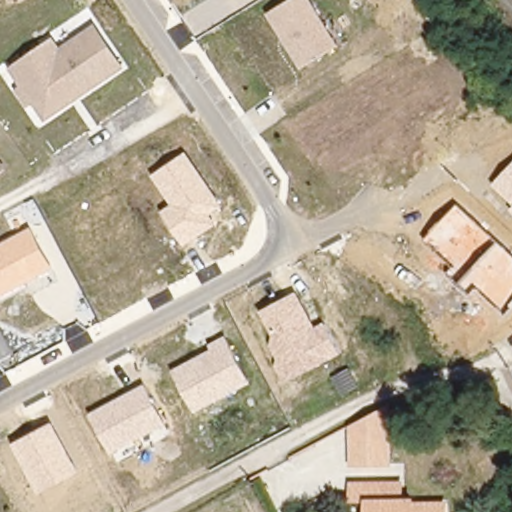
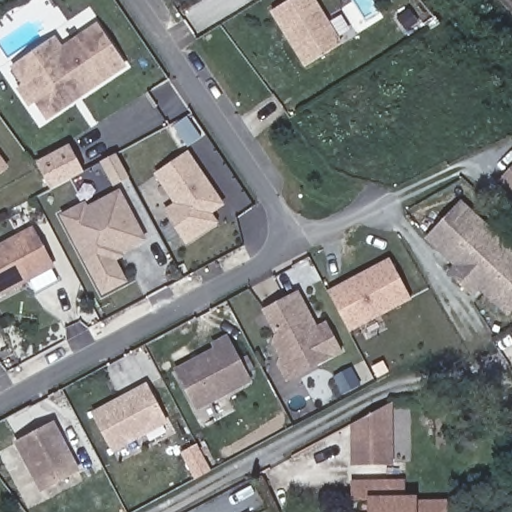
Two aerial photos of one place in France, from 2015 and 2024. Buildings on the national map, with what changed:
unchanged [(316,0),(343,43),(305,68),(271,12),(291,0),(316,0)]
unchanged [(49,122),(37,104),(31,107),(17,88),(24,84),(11,64),(54,37),(62,47),(98,24),(129,67),(49,122)]
new [(83,171),(50,188),(35,164),(67,146),(83,171)]
unchanged [(210,212),(220,225),(186,246),(164,212),(174,204),(155,174),(189,151),(224,202),(210,212)]
unchanged [(512,165),(512,196),(497,182),(512,165)]
unchanged [(3,176),(0,178),(0,171),(3,176)]
new [(122,256),(113,260),(125,281),(102,292),(61,215),(84,204),(86,209),(118,192),(144,240),(129,247),(120,252),(122,256)]
unchanged [(478,287),(472,293),(452,270),(456,265),(426,237),(462,200),(512,247),(512,309),(509,312),(478,287)]
unchanged [(56,268),(2,296),(0,292),(0,245),(34,227),(56,268)]
new [(388,257),(411,300),(349,332),(327,290),(388,257)]
unchanged [(287,382),(278,363),(281,357),(272,342),(276,336),(262,308),(299,290),(318,325),(326,321),(343,352),(287,382)]
unchanged [(199,412),(177,368),(214,347),(211,343),(230,335),(255,382),(199,412)]
unchanged [(113,453),(92,413),(150,384),(171,425),(113,453)]
unchanged [(393,466),(356,466),(357,422),(389,404),(395,403),(393,466)]
unchanged [(42,491),(17,442),(55,422),(83,472),(42,491)]
unchanged [(370,499),(352,498),(352,479),(401,480),(401,495),(412,495),(412,502),(447,502),(447,512),(370,512),(370,499)]

